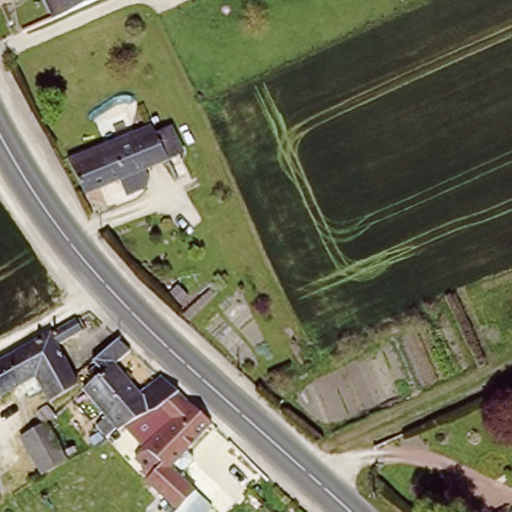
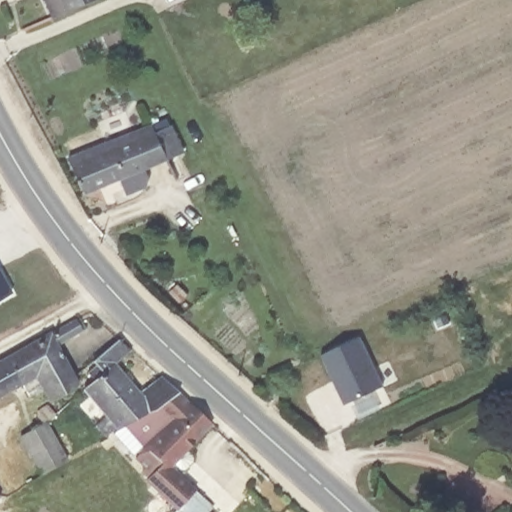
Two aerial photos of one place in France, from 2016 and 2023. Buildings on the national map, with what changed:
unchanged [(53,20),(45,0),(100,0),(53,20)]
unchanged [(167,163),(140,175),(145,187),(123,196),(118,184),(91,196),(76,159),(151,127),(167,163)]
new [(0,298),(0,276),(10,293),(0,298)]
unchanged [(62,352),(82,383),(40,409),(25,382),(0,397),(0,361),(75,318),(88,335),(62,352)]
new [(322,354),(360,339),(381,386),(343,404),(322,354)]
unchanged [(121,371),(140,390),(160,376),(217,425),(178,467),(215,504),(208,512),(171,512),(130,465),(165,428),(147,412),(117,436),(80,391),(99,373),(88,362),(117,342),(134,358),(121,371)]
unchanged [(46,419),(69,464),(37,478),(17,435),(46,419)]

